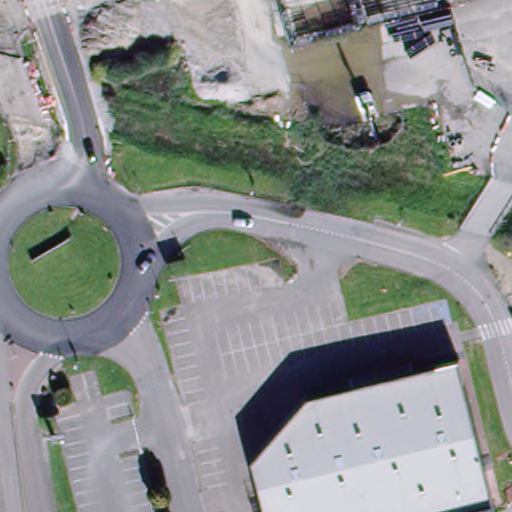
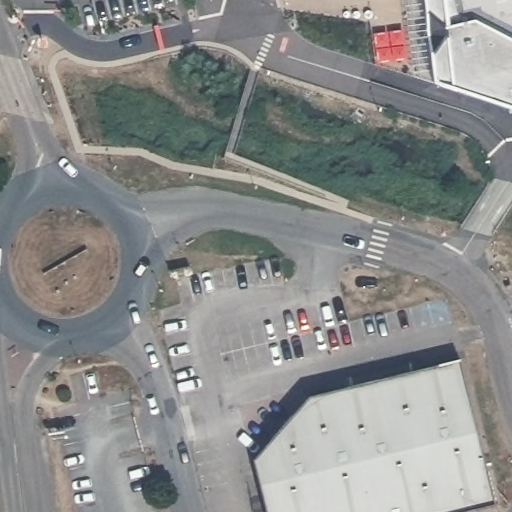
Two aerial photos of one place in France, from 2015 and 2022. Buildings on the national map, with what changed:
new [(512,109),(432,83),(423,0),(512,0),(512,109)]
unchanged [(458,359),(496,505),(468,512),(262,512),(250,461),(306,395),(458,359)]

